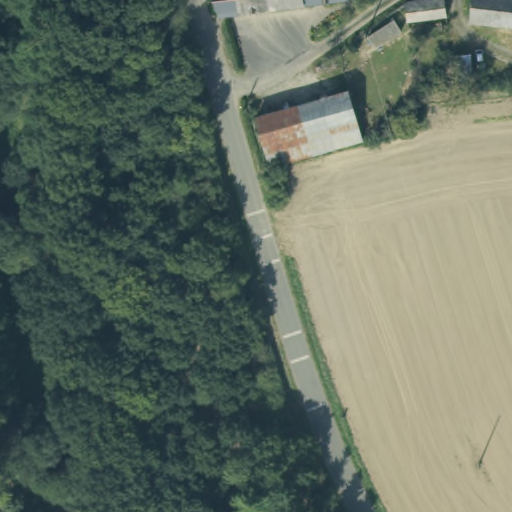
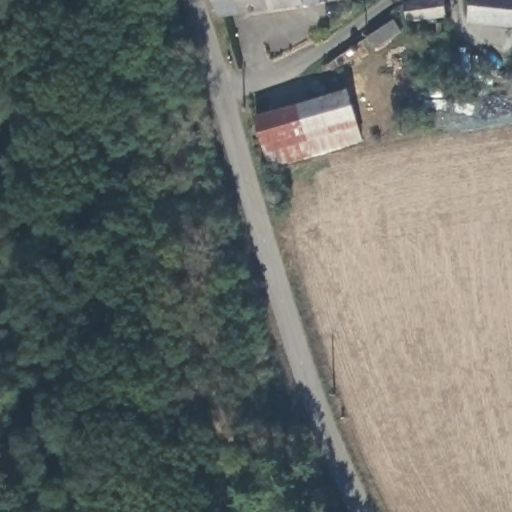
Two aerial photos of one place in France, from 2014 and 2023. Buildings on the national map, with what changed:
unchanged [(347,1),(218,14),(214,0),(347,0),(347,1)]
unchanged [(447,17),(408,22),(406,5),(435,0),(444,0),(447,17)]
unchanged [(474,0),(512,0),(512,26),(472,22),(474,0)]
unchanged [(461,87),(461,80),(458,62),(472,60),(475,80),(475,86),(461,87)]
unchanged [(257,115),(297,105),(321,97),(322,100),(345,94),(352,117),(358,141),(335,148),(272,165),(267,149),(257,115)]

